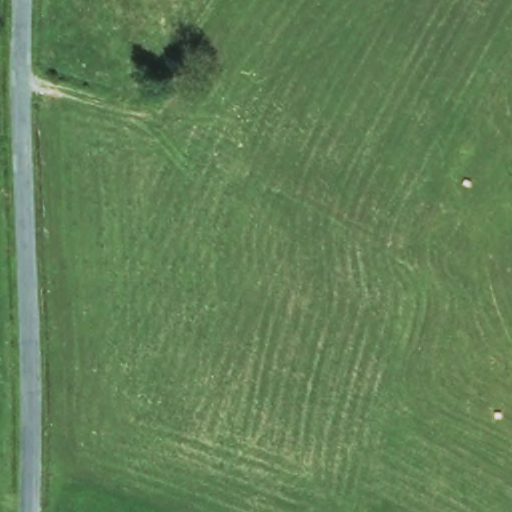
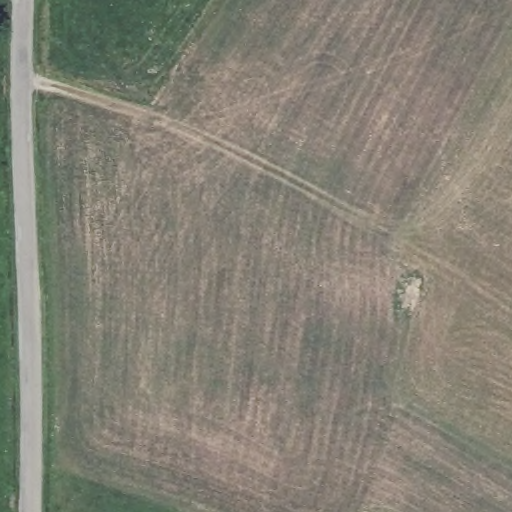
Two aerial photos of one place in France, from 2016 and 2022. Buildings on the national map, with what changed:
[]

